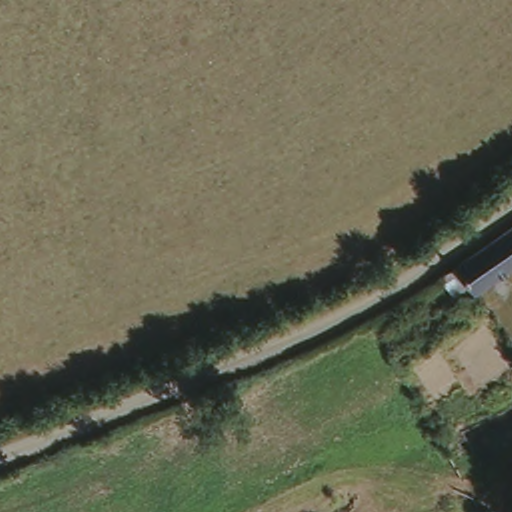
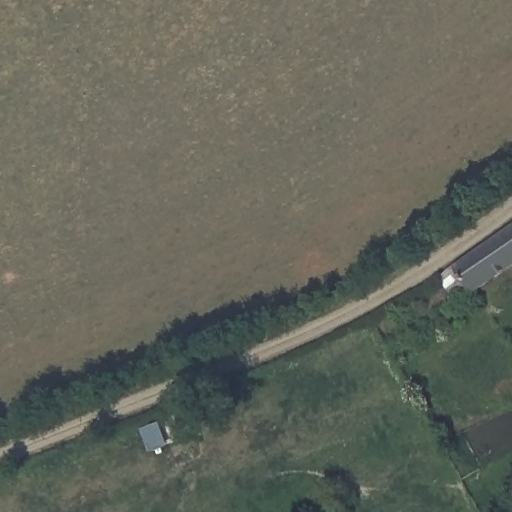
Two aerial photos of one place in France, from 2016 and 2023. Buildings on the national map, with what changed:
unchanged [(473,289),(467,281),(454,291),(442,271),(444,270),(512,221),(512,260),(473,289)]

